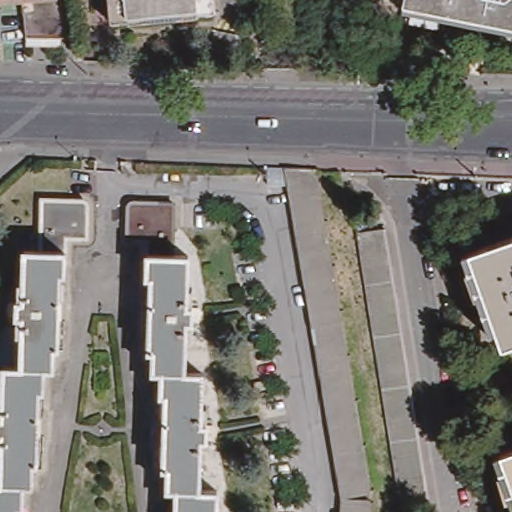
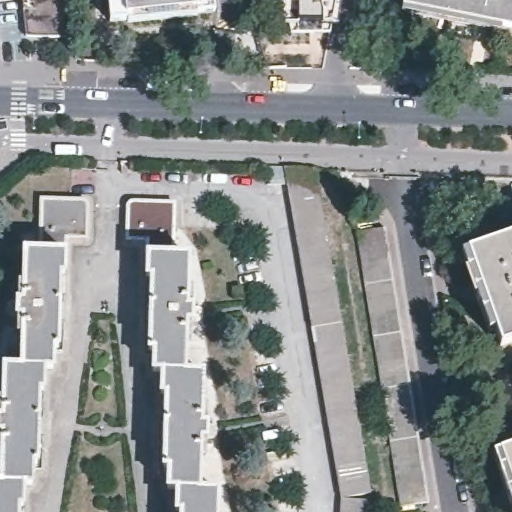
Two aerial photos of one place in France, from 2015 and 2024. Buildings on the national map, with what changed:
unchanged [(65,38),(25,37),(21,0),(62,0),(65,38)]
unchanged [(220,4),(115,17),(113,0),(220,0),(220,4)]
new [(334,23),(299,23),(286,26),(281,6),(288,5),(286,0),(337,0),(334,23)]
unchanged [(408,9),(410,0),(512,0),(512,29),(408,9)]
unchanged [(381,67),(364,66),(364,47),(383,48),(381,67)]
unchanged [(3,175),(1,170),(8,163),(12,168),(3,175)]
unchanged [(316,172),(351,371),(359,420),(364,445),(374,498),(343,504),(334,457),(321,384),(285,170),(316,172)]
unchanged [(138,195),(140,194),(181,196),(179,233),(154,233),(133,231),(136,197),(138,195)]
unchanged [(85,197),(87,198),(89,199),(90,201),(90,203),(88,235),(69,234),(44,233),(46,197),(85,197)]
unchanged [(374,327),(373,315),(371,302),(369,288),(366,275),(364,262),(362,249),(360,235),(358,223),(386,219),(388,232),(389,246),(392,259),(394,272),(396,285),(398,299),(399,312),(402,324),(404,337),(406,350),(408,363),(409,377),(412,389),(414,403),(416,416),(418,428),(419,441),(422,456),(424,467),(426,481),(428,496),(401,499),(398,484),(396,470),(394,459),(392,444),(390,431),(388,419),(386,406),(384,392),(382,380),(380,366),(378,353),(376,340),(374,327)]
unchanged [(4,438),(4,435),(0,435),(0,412),(5,412),(7,365),(23,365),(25,319),(14,319),(15,295),(25,295),(28,248),(43,248),(44,233),(69,234),(68,272),(65,272),(65,275),(61,346),(58,346),(57,367),(44,366),(40,462),(38,462),(36,482),(28,481),(28,505),(23,506),(23,512),(0,512),(0,481),(3,481),(4,438)]
unchanged [(179,249),(196,250),(195,297),(204,297),(204,323),(195,322),(194,323),(193,368),(211,368),(209,414),(218,414),(218,439),(209,438),(208,440),(207,485),(223,485),(223,512),(186,512),(186,506),(182,506),(182,483),(174,482),(174,463),(170,462),(171,389),(168,387),(167,366),(159,365),(159,344),(156,343),(158,272),(153,272),(154,233),(179,233),(179,249)]
unchanged [(511,342),(478,246),(512,234),(512,341),(511,342)]
unchanged [(510,445),(512,445),(512,451),(510,445)]
unchanged [(371,512),(342,512),(343,504),(371,505),(371,512)]

